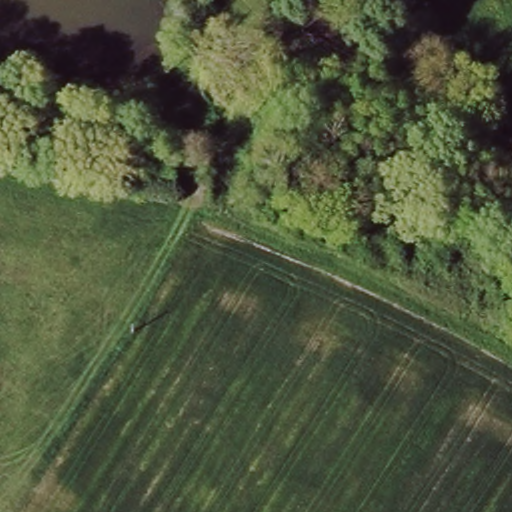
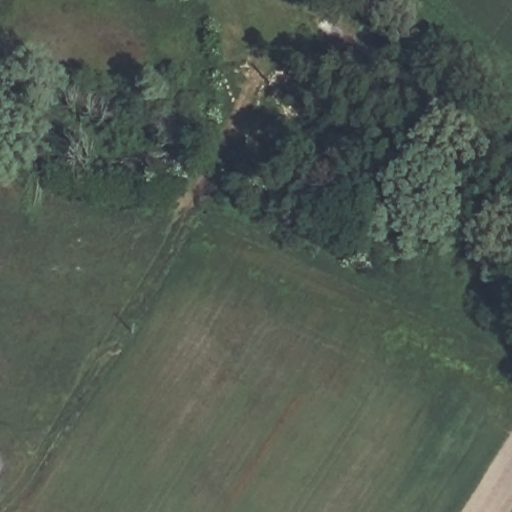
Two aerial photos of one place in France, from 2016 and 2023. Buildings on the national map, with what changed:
[]

